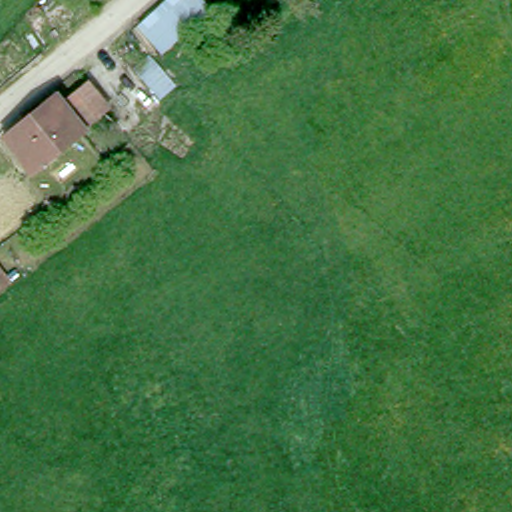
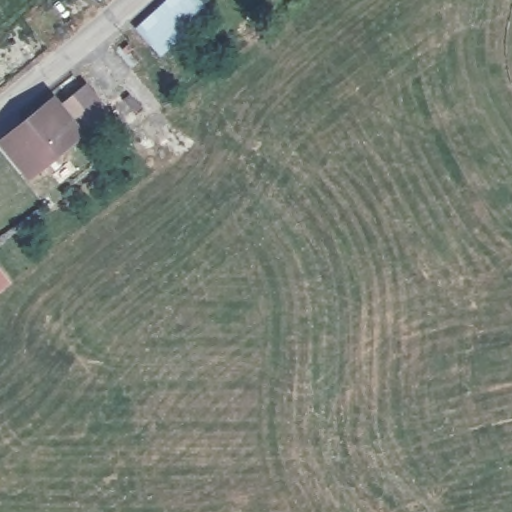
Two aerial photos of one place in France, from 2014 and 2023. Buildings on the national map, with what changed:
unchanged [(143,29),(175,0),(202,0),(210,11),(164,52),(143,29)]
unchanged [(93,105),(84,114),(74,103),(66,109),(60,102),(79,88),(90,101),(93,105)]
unchanged [(49,100),(77,135),(25,175),(0,144),(0,139),(49,100)]
unchanged [(8,280),(0,287),(0,269),(8,280)]

